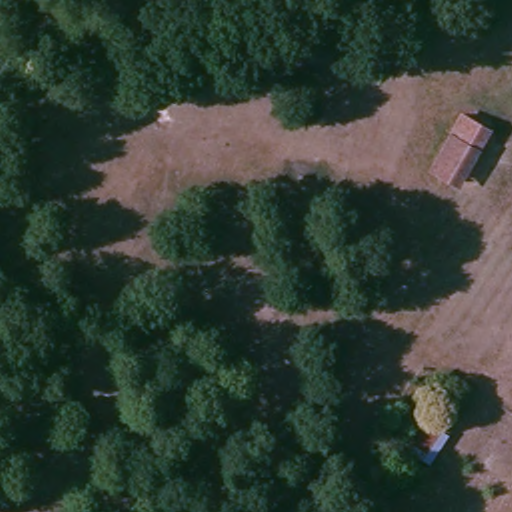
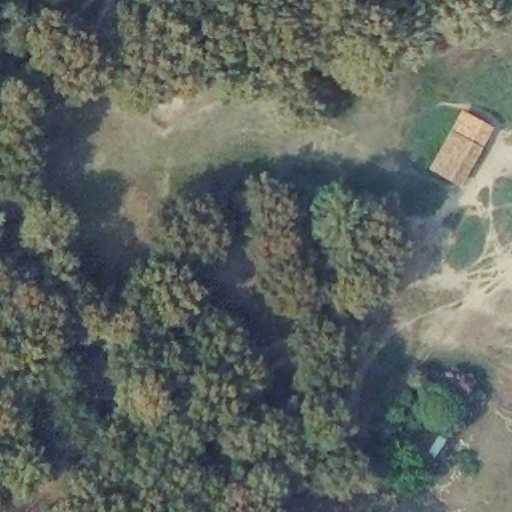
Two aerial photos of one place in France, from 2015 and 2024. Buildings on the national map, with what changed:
unchanged [(429,163),(450,126),(482,143),(461,184),(429,163)]

